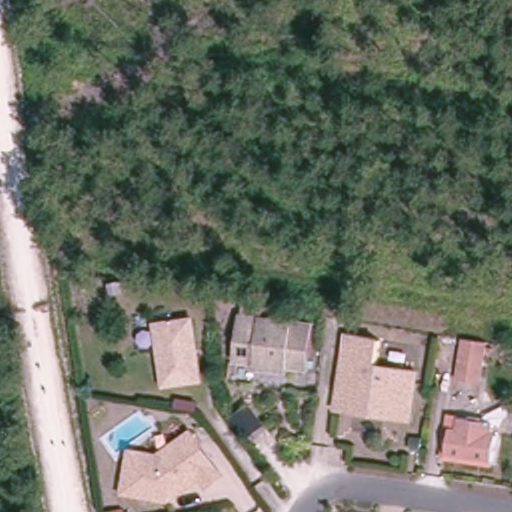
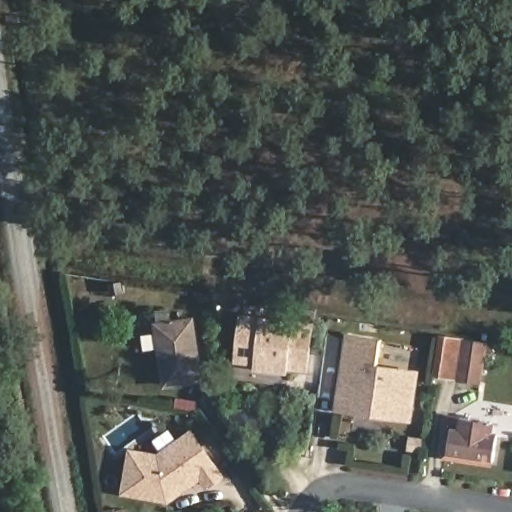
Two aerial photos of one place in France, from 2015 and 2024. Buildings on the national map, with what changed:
unchanged [(309,320),(306,363),(285,363),(286,368),(258,366),(257,360),(237,360),(241,316),(309,320)]
unchanged [(165,387),(158,332),(157,324),(175,322),(194,320),(202,383),(165,387)]
unchanged [(383,347),(380,372),(419,377),(412,422),(339,411),(349,343),(383,347)]
unchanged [(463,351),(486,352),(484,381),(463,381),(463,351)]
unchanged [(245,397),(260,419),(244,431),(229,409),(245,397)]
unchanged [(493,426),(492,434),(496,439),(494,465),(448,456),(451,430),(460,431),(462,419),(493,426)]
unchanged [(159,457),(192,432),(223,476),(212,486),(203,477),(171,501),(125,495),(130,453),(159,457)]

